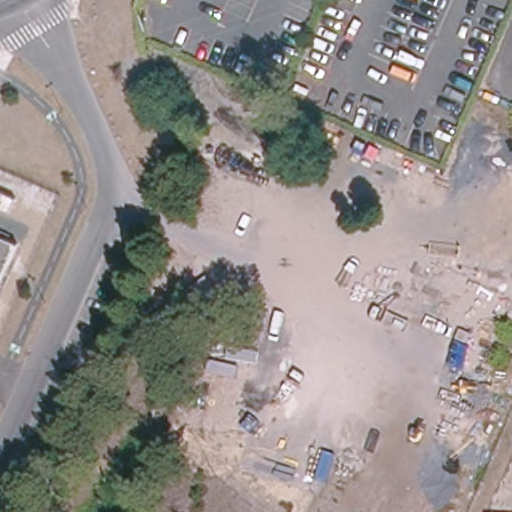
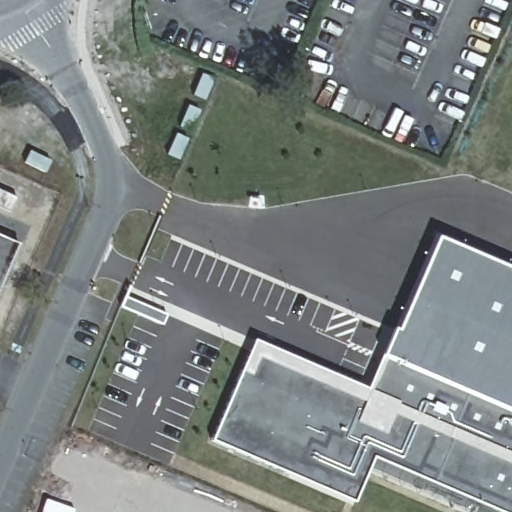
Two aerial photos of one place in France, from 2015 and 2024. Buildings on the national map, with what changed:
unchanged [(0,208),(0,190),(17,197),(10,212),(0,208)]
new [(254,341),(369,390),(386,354),(437,234),(512,269),(512,512),(503,512),(374,456),(354,501),(212,439),(254,341)]
unchanged [(0,236),(19,244),(0,288),(0,236)]

